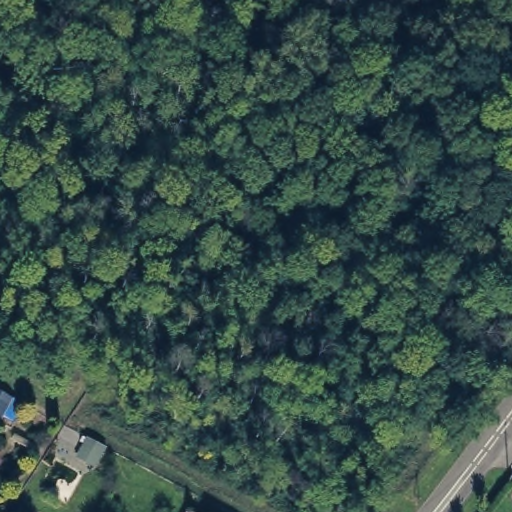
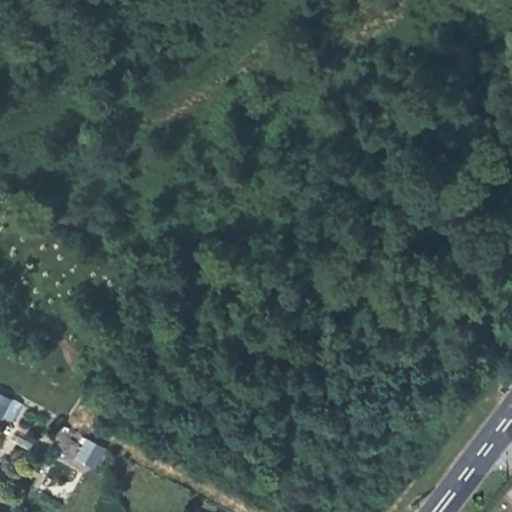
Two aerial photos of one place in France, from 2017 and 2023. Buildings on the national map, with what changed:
unchanged [(187,511),(190,512),(186,512),(187,511)]

